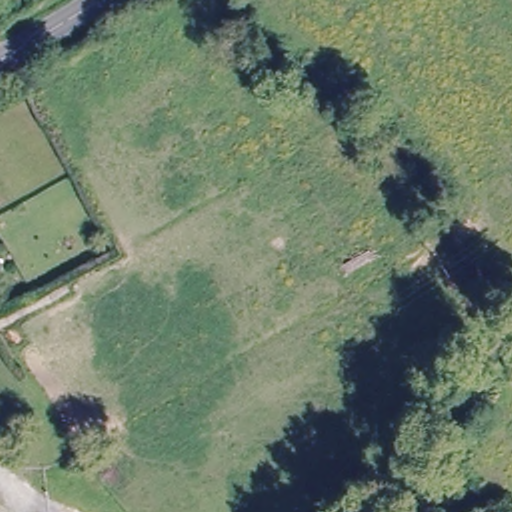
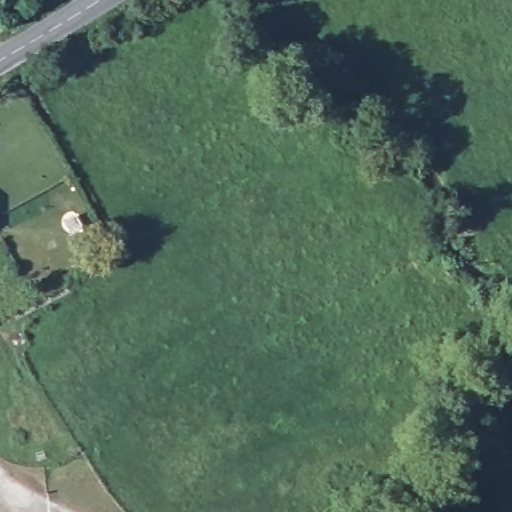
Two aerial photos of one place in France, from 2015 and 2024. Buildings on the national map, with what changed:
unchanged [(365,512),(353,512),(341,505),(364,467),(383,480),(365,512)]

